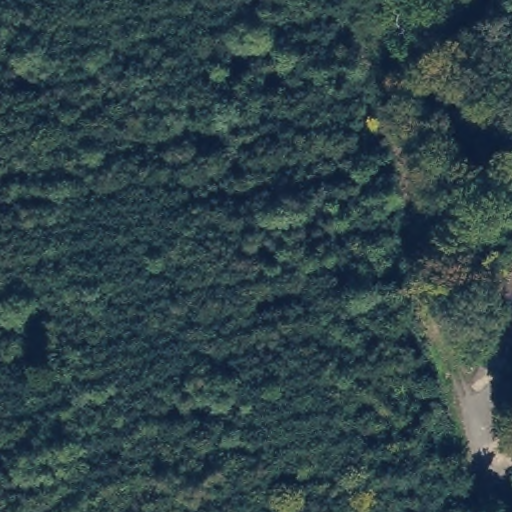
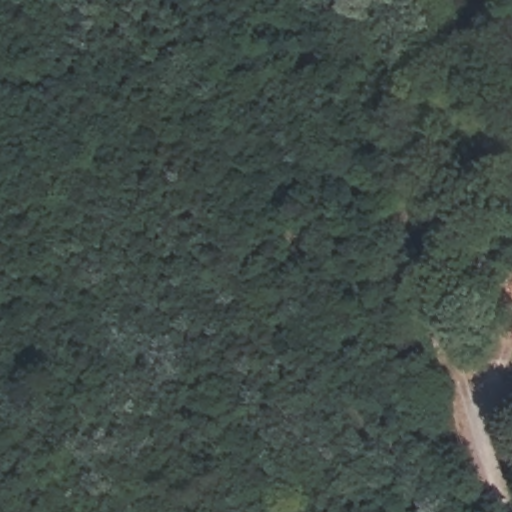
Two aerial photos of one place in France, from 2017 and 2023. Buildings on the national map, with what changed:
unchanged [(512,331),(512,342),(509,341),(512,331)]

